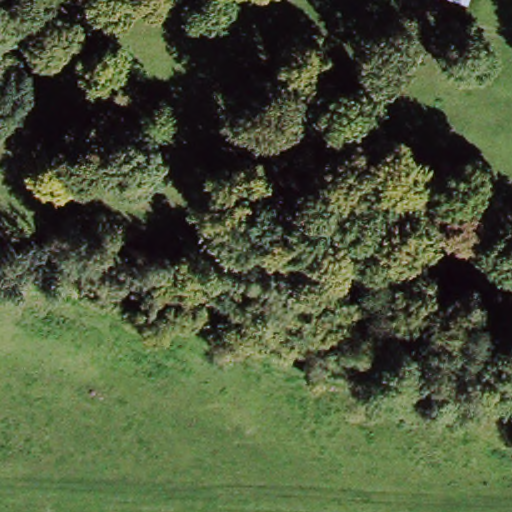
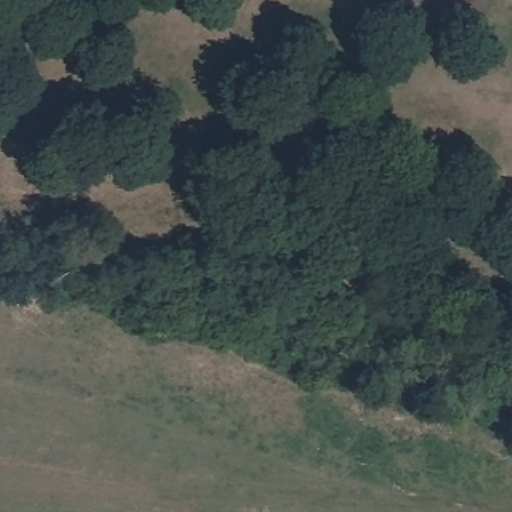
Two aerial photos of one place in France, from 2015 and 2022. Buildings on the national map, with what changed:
unchanged [(466,0),(464,6),(442,0),(466,0)]

